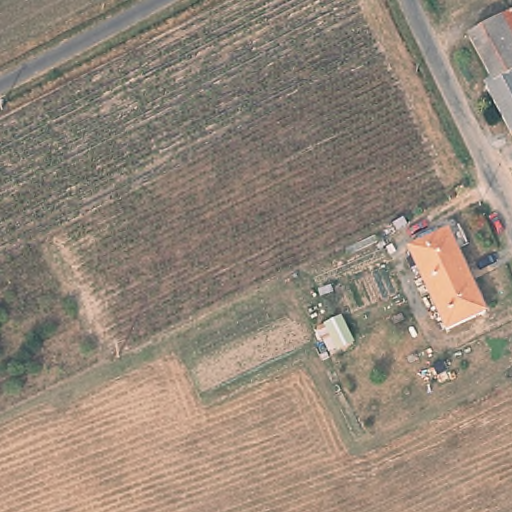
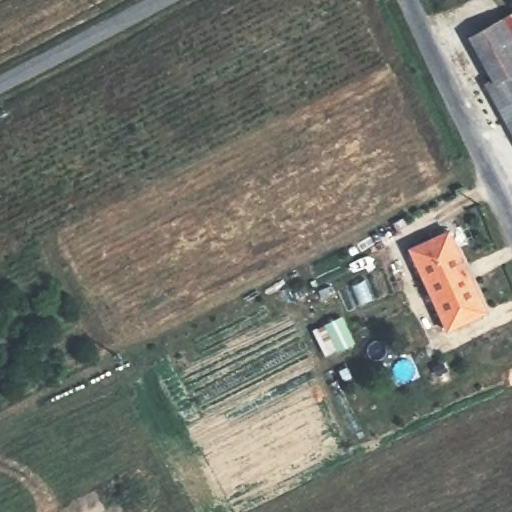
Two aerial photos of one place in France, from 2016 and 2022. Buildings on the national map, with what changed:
unchanged [(490,87),(495,83),(472,37),(507,18),(512,27),(512,128),(490,87)]
unchanged [(445,232),(484,313),(445,332),(406,250),(445,232)]

